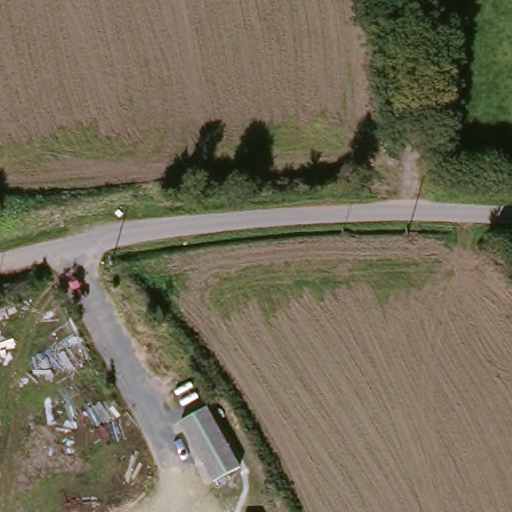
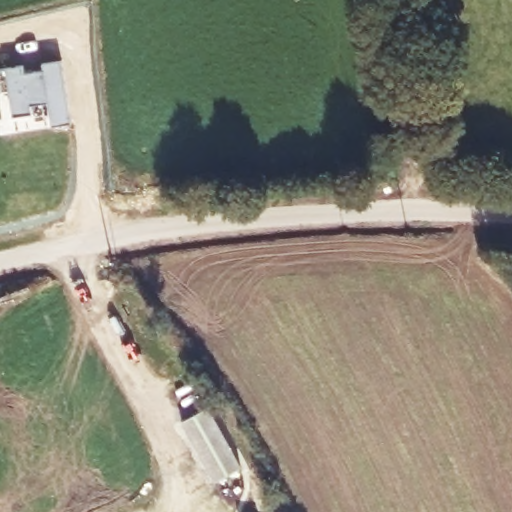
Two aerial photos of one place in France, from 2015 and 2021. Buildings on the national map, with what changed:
new [(31,114),(13,116),(5,70),(23,67),(23,74),(43,71),(42,63),(60,61),(69,124),(51,126),(47,102),(30,105),(31,114)]
unchanged [(238,465),(210,480),(178,424),(207,410),(238,465)]

